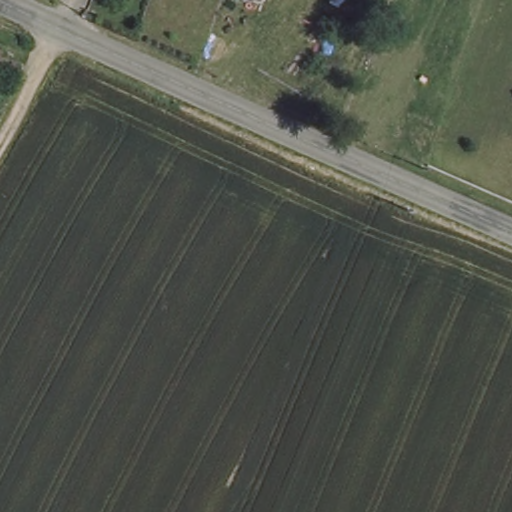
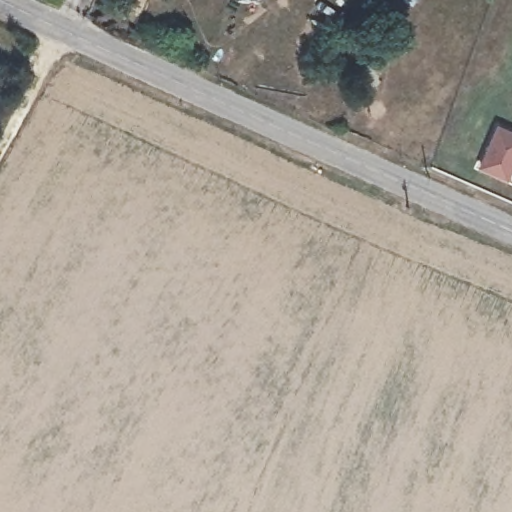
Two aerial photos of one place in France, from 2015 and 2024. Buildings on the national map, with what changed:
new [(512,129),(512,163),(507,174),(482,163),(499,124),(512,129)]

